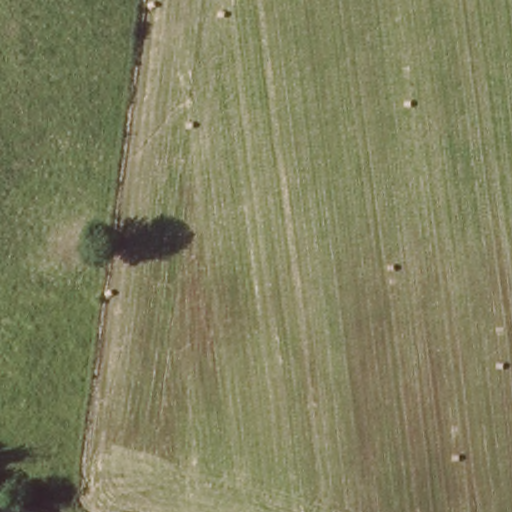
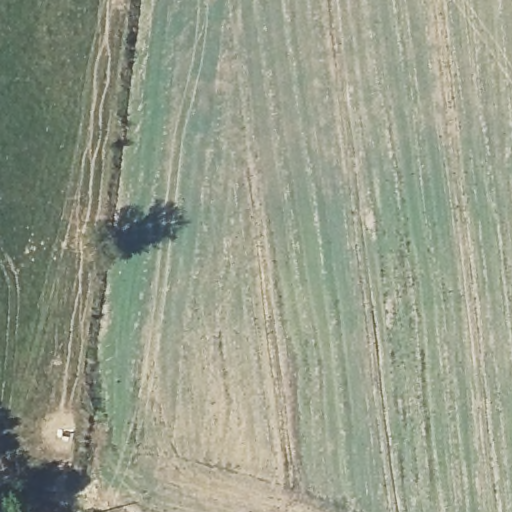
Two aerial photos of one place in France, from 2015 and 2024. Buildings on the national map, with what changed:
[]

